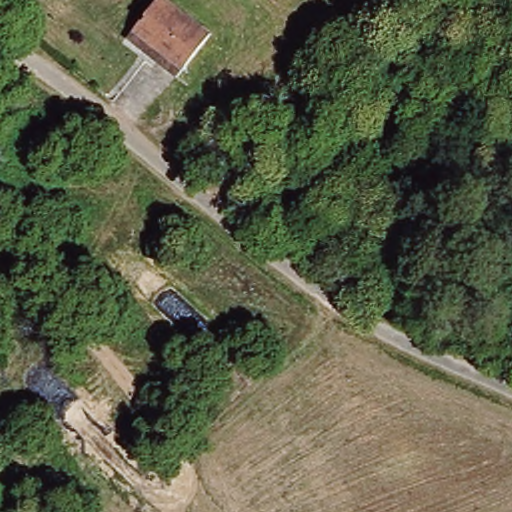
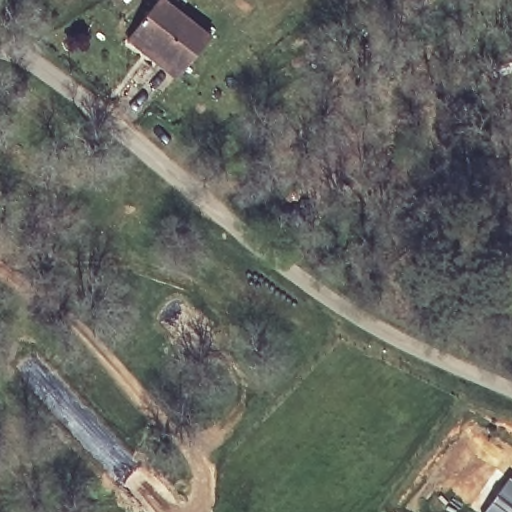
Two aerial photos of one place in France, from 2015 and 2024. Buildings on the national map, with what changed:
unchanged [(164,0),(173,0),(214,35),(178,76),(132,37),(164,0)]
new [(485,512),(511,480),(512,481),(512,512),(485,512)]

